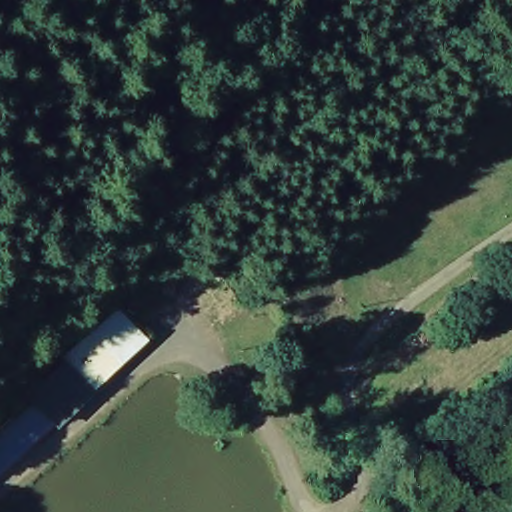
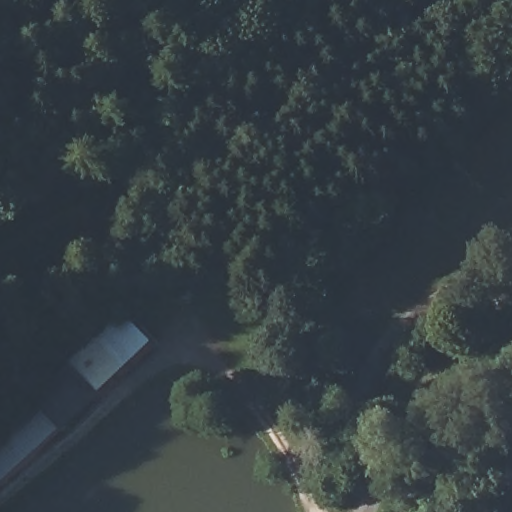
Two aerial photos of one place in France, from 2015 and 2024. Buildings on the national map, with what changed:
unchanged [(39,409),(30,400),(117,315),(155,348),(0,489),(0,444),(39,409)]

